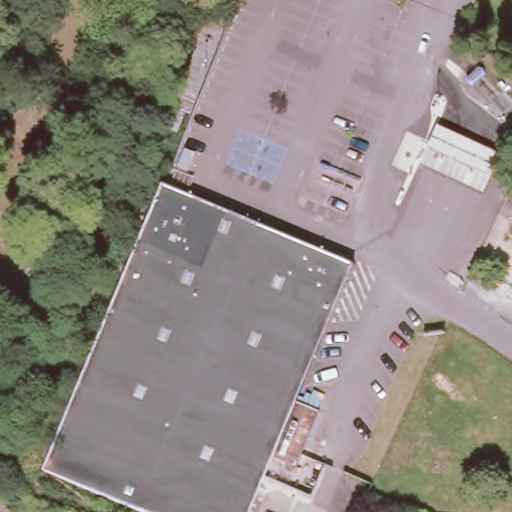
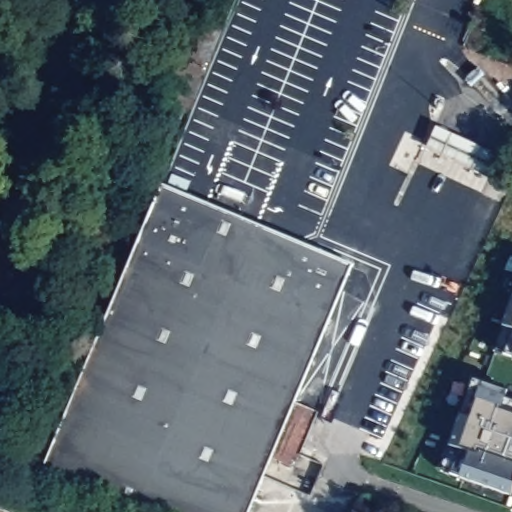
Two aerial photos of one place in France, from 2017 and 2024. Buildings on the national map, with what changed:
demolished [(484,0),(509,0),(512,3),(512,24),(500,51),(473,38),(484,0)]
unchanged [(491,180),(430,155),(441,124),(501,150),(491,180)]
unchanged [(249,512),(148,512),(44,469),(162,186),(351,263),(249,512)]
new [(512,295),(512,358),(493,351),(512,295)]
new [(502,398),(512,402),(512,497),(438,471),(470,380),(504,391),(502,398)]

